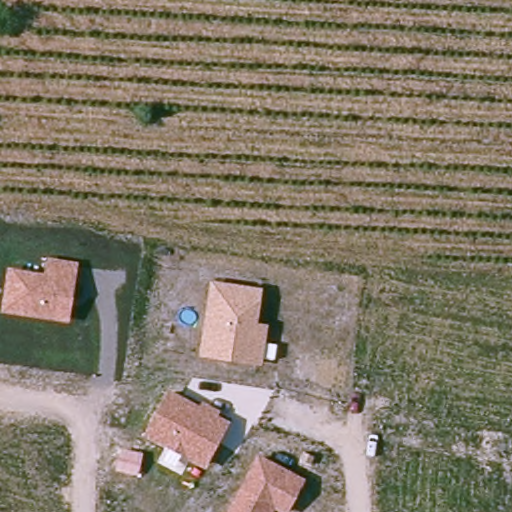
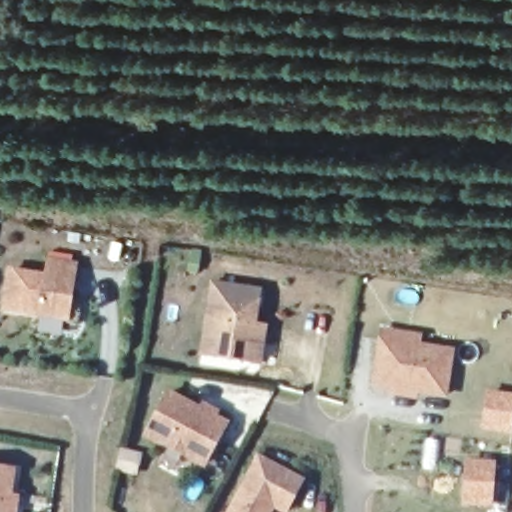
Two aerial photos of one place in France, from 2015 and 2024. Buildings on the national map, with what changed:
unchanged [(75,304),(69,322),(1,312),(8,266),(45,273),(47,257),(78,262),(75,304)]
unchanged [(211,280),(262,287),(258,322),(268,324),(262,366),(199,355),(211,280)]
new [(454,347),(448,398),(418,393),(418,399),(388,395),(388,388),(370,385),(378,337),(380,327),(422,332),(421,341),(454,347)]
unchanged [(168,389),(198,405),(201,400),(221,410),(219,415),(231,421),(205,468),(143,435),(168,389)]
new [(487,389),(512,393),(512,434),(481,430),(487,389)]
unchanged [(144,452),(139,475),(117,470),(122,448),(144,452)]
unchanged [(305,478),(288,512),(279,512),(275,510),(274,512),(225,512),(258,453),(305,478)]
new [(465,458),(496,460),(493,507),(462,505),(465,458)]
new [(0,512),(0,464),(15,466),(13,493),(19,495),(17,512),(0,512)]

